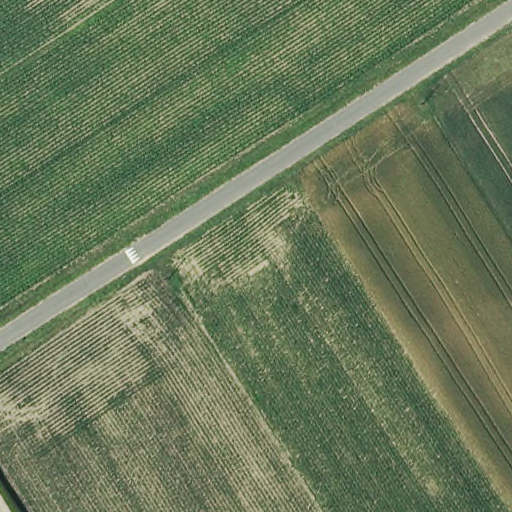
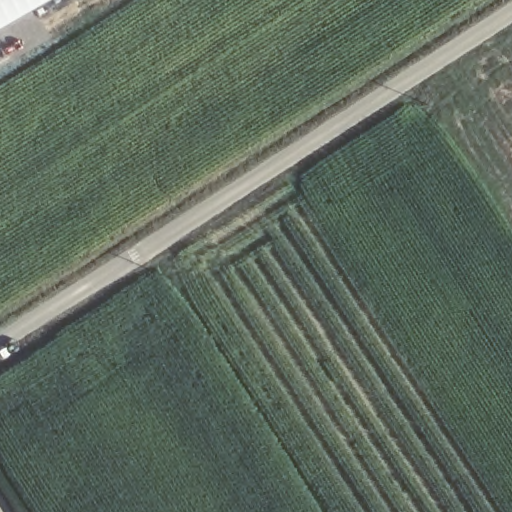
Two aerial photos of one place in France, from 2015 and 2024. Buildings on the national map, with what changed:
new [(0,25),(0,0),(44,0),(0,25)]

